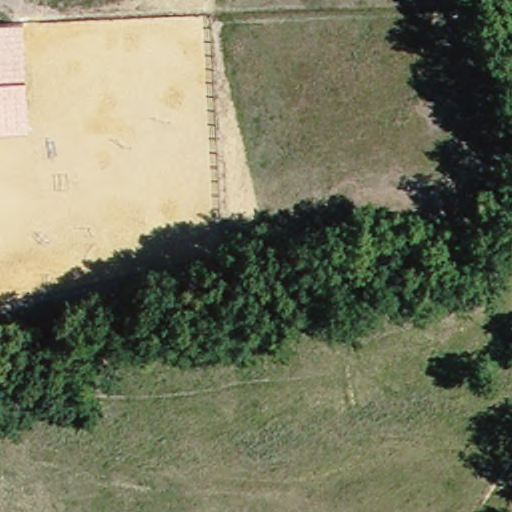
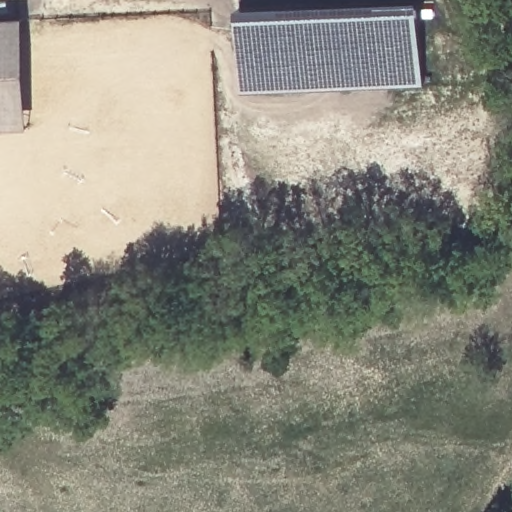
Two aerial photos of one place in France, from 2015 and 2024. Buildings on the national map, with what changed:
new [(238,7),(410,0),(422,0),(426,84),(241,92),(238,7)]
unchanged [(21,13),(30,120),(0,122),(0,15),(21,13)]

